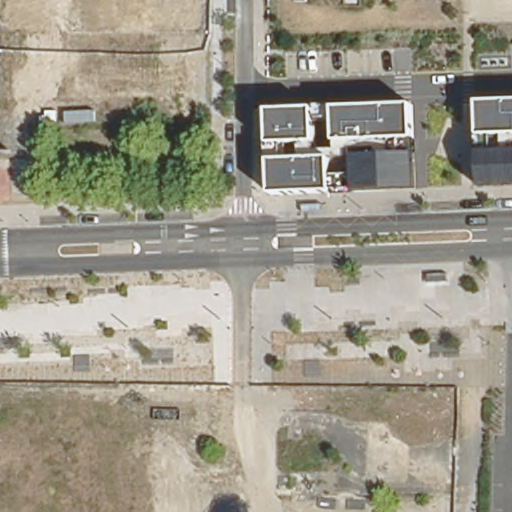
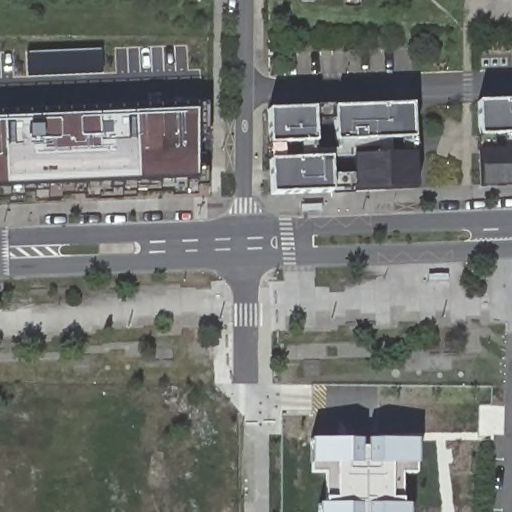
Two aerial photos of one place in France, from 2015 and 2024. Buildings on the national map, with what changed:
unchanged [(312,3),(301,3),(301,0),(312,0),(312,3)]
new [(26,52),(99,49),(101,72),(26,76),(26,52)]
unchanged [(512,188),(482,190),(479,102),(512,101),(512,188)]
unchanged [(270,190),(268,109),(412,103),(415,184),(270,190)]
new [(202,104),(200,184),(182,185),(182,193),(167,194),(166,191),(155,192),(154,184),(146,183),(145,187),(131,187),(132,193),(95,193),(93,198),(79,199),(77,195),(57,196),(56,200),(41,200),(40,195),(0,196),(0,112),(202,104)]
new [(321,504),(323,473),(308,472),(308,464),(309,463),(309,439),(362,440),(361,446),(366,446),(366,439),(417,441),(417,464),(413,464),(416,474),(401,474),(396,498),(402,499),(402,505),(410,505),(409,512),(318,512),(318,504),(321,504)]

